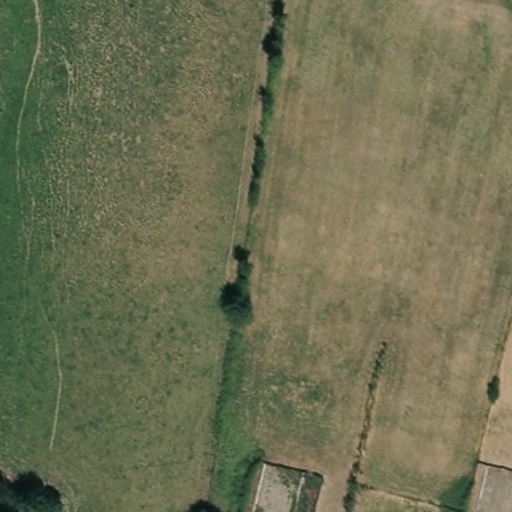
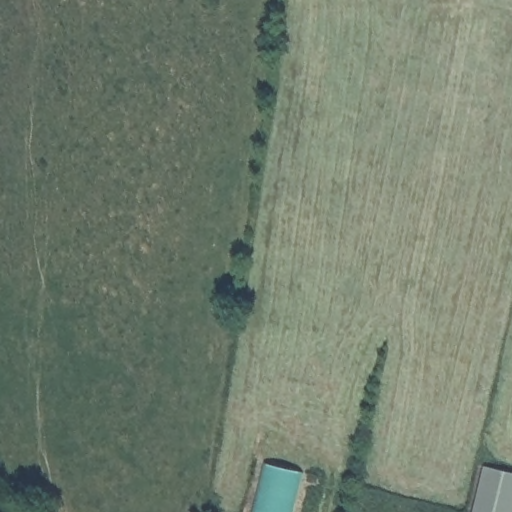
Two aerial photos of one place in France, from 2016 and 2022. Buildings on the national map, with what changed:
unchanged [(303,472),(294,512),(253,512),(263,465),(303,472)]

